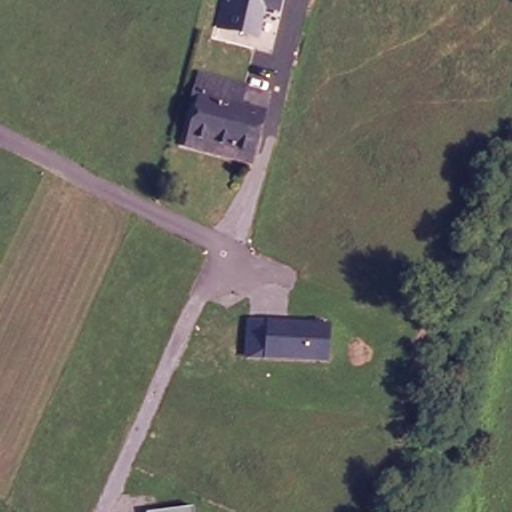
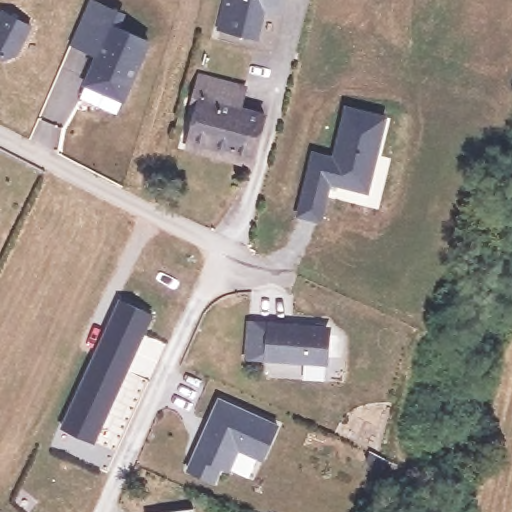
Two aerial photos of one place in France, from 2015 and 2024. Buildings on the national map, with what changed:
unchanged [(274,0),(265,39),(236,31),(226,27),(234,0),(274,0)]
new [(31,25),(16,54),(4,58),(0,56),(0,19),(4,11),(31,25)]
new [(155,36),(127,104),(81,84),(92,56),(110,18),(155,36)]
unchanged [(190,146),(202,105),(197,103),(204,80),(246,93),(240,116),(265,124),(251,173),(232,168),(187,154),(190,146)]
new [(310,149),(330,153),(344,103),(388,115),(367,194),(330,184),(318,223),(294,216),(310,149)]
new [(120,303),(152,317),(144,336),(126,373),(95,359),(111,322),(120,303)]
unchanged [(330,325),(329,366),(242,362),(246,319),(330,325)]
new [(95,359),(126,373),(94,444),(62,429),(95,359)]
new [(280,425),(263,463),(239,452),(229,473),(220,469),(214,484),(186,471),(219,398),(280,425)]
unchanged [(194,509),(194,512),(158,512),(194,509)]

